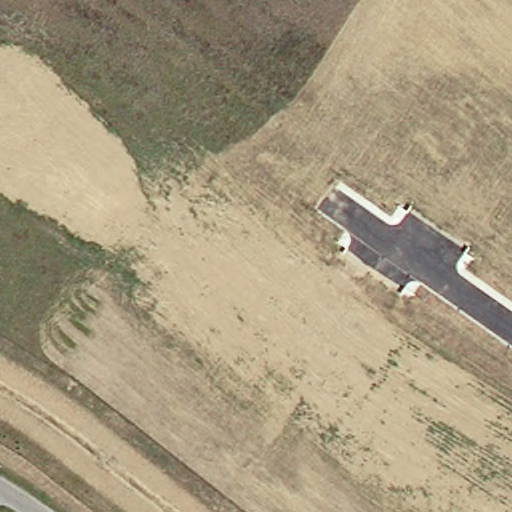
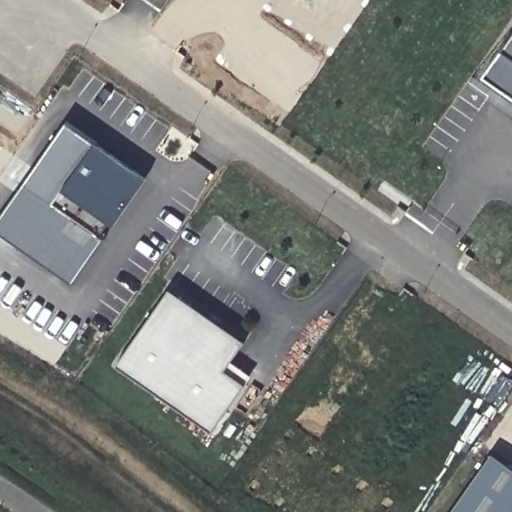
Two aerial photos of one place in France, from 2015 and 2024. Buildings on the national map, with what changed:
new [(512,31),(512,35),(482,79),(493,86),(492,87),(512,100),(512,118),(467,88),(512,31)]
new [(493,86),(482,79),(512,35),(512,100),(492,87),(493,86)]
new [(97,141),(146,176),(104,237),(72,282),(0,231),(0,212),(65,120),(97,141)]
new [(231,358),(251,374),(244,383),(211,430),(117,365),(170,289),(243,341),(231,358)]
new [(512,512),(450,512),(492,453),(512,467),(512,512)]

